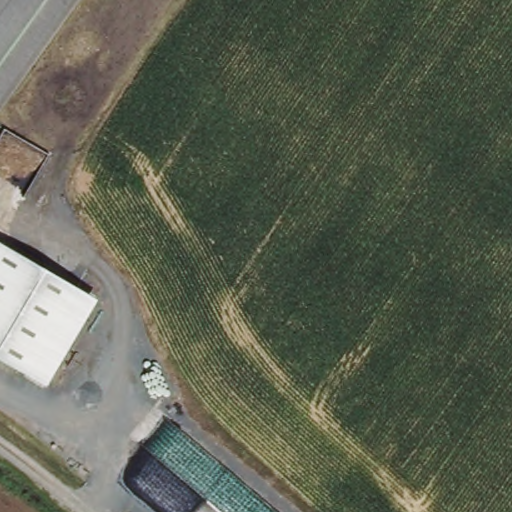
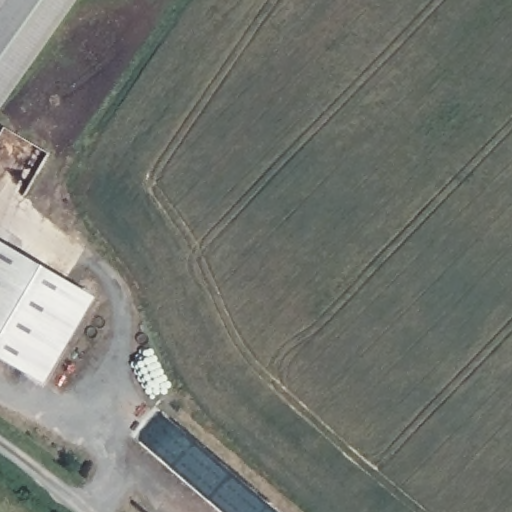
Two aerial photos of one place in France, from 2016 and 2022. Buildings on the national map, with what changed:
unchanged [(0,0),(11,0),(0,16),(0,0)]
unchanged [(77,0),(0,104),(0,16),(11,0),(77,0)]
unchanged [(48,385),(0,359),(0,240),(99,298),(48,385)]

